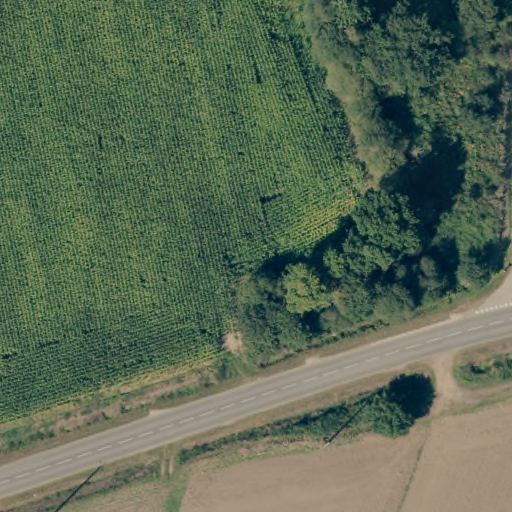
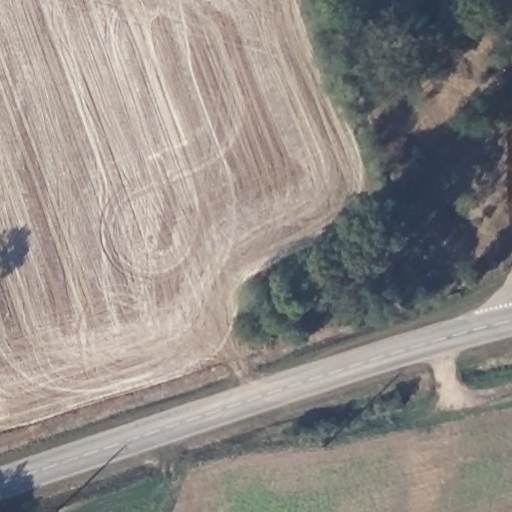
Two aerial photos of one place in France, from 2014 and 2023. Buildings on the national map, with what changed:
[]

